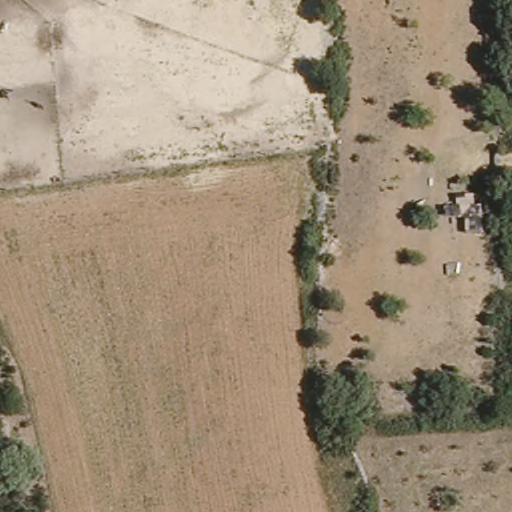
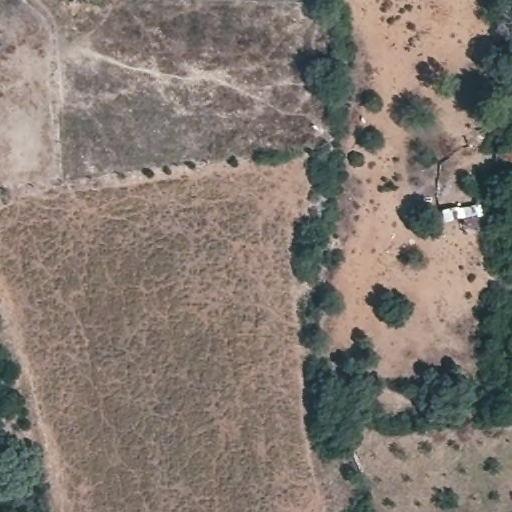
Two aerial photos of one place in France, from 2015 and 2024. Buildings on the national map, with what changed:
[]

